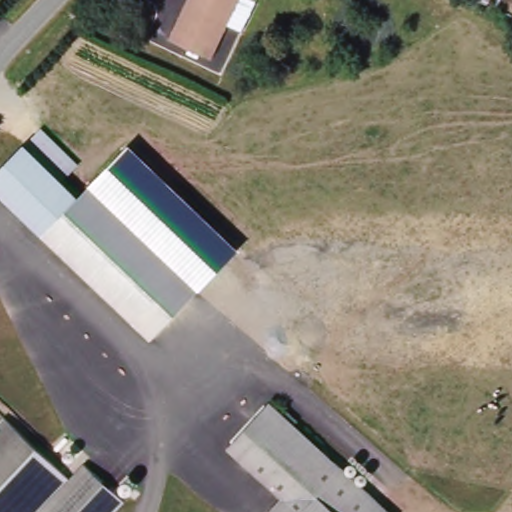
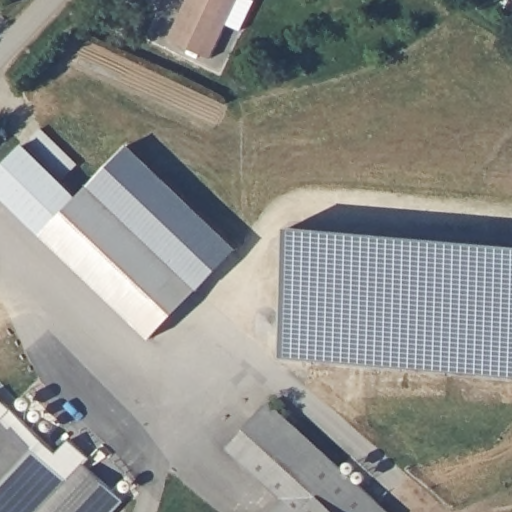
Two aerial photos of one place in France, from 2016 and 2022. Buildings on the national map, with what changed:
unchanged [(245,32),(230,26),(215,61),(201,55),(173,43),(174,40),(192,0),(259,0),(258,2),(245,32)]
unchanged [(74,167),(60,182),(22,147),(37,131),(74,167)]
unchanged [(239,249),(197,292),(87,189),(129,145),(239,249)]
unchanged [(0,198),(0,171),(21,148),(76,200),(42,237),(0,198)]
unchanged [(42,237),(76,200),(87,189),(197,292),(151,340),(42,237)]
new [(512,245),(512,378),(281,357),(291,226),(512,245)]
unchanged [(309,512),(303,512),(288,498),(232,448),(248,430),(274,402),(348,469),(309,512)]
unchanged [(74,480),(89,463),(129,500),(118,512),(0,512),(0,429),(10,418),(74,480)]
unchanged [(348,469),(395,512),(309,512),(348,469)]
unchanged [(288,498),(303,512),(275,512),(288,498)]

